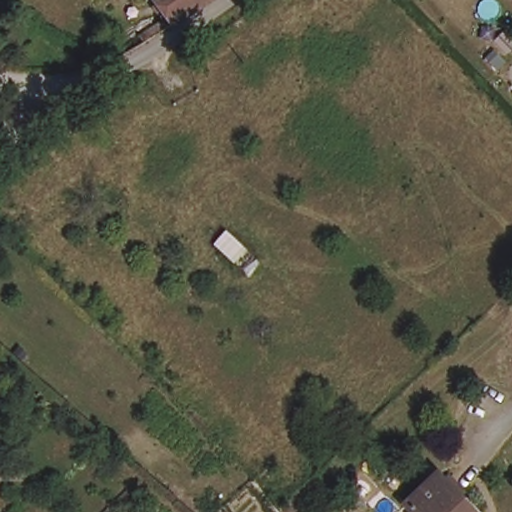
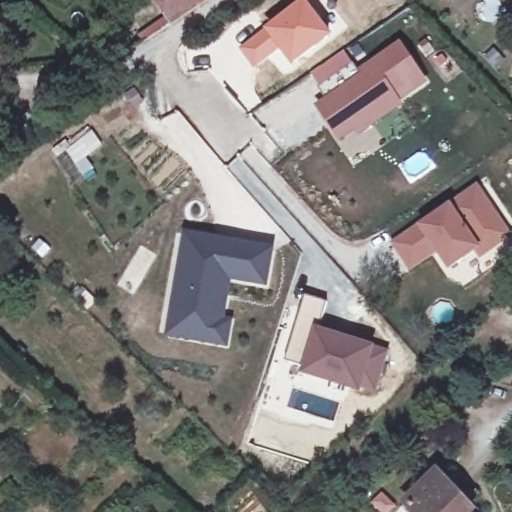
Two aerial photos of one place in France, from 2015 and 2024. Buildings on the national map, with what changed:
unchanged [(150,0),(218,0),(167,28),(150,0)]
new [(263,30),(304,0),(305,0),(332,35),(290,68),(278,51),(252,68),(237,49),(263,30)]
new [(357,41),(366,54),(320,87),(309,73),(357,41)]
new [(345,81),(370,61),(400,42),(430,83),(403,104),(355,136),(352,132),(336,141),(312,105),(345,81)]
new [(512,230),(512,236),(475,260),(472,255),(446,272),(434,256),(408,273),(387,242),(477,180),(512,230)]
new [(235,284),(227,319),(235,322),(230,349),(167,338),(186,234),(277,250),(269,289),(235,284)]
new [(303,367),(286,361),(307,297),(328,304),(320,329),(377,348),(390,352),(377,391),(364,387),(362,395),(300,374),(303,367)]
unchanged [(410,507),(442,478),(463,502),(458,506),(464,512),(415,512),(410,507)]

